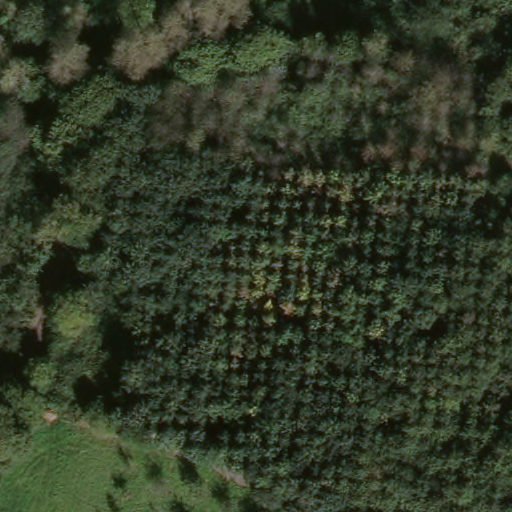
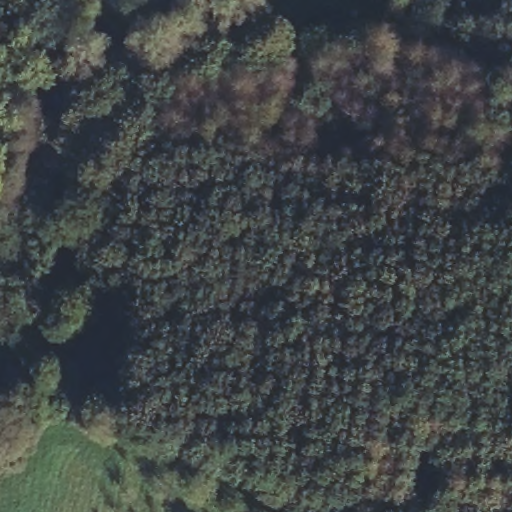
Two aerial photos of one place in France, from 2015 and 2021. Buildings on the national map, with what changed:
[]

